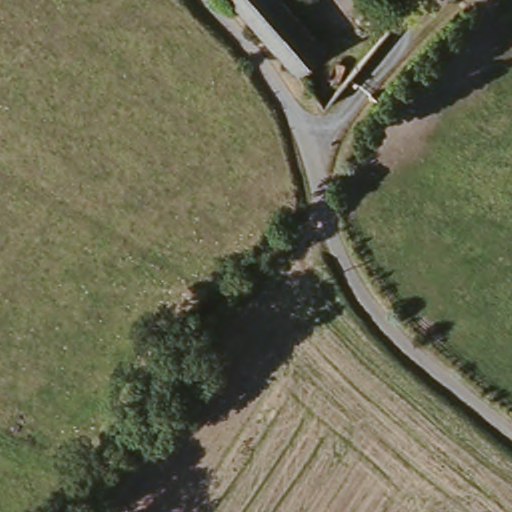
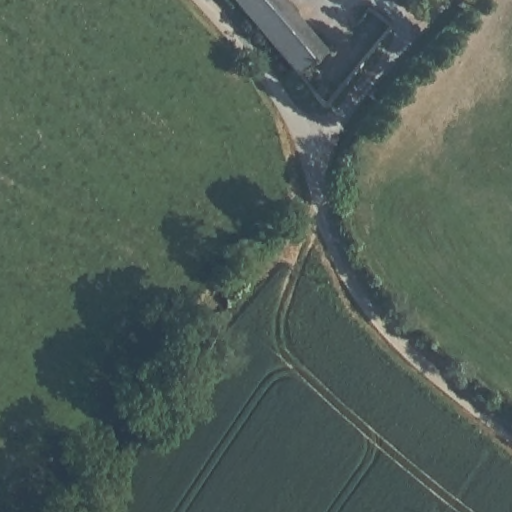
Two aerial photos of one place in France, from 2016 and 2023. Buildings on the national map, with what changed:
unchanged [(325,51),(362,0),(369,0),(390,21),(327,106),(245,0),(284,0),(325,51)]

